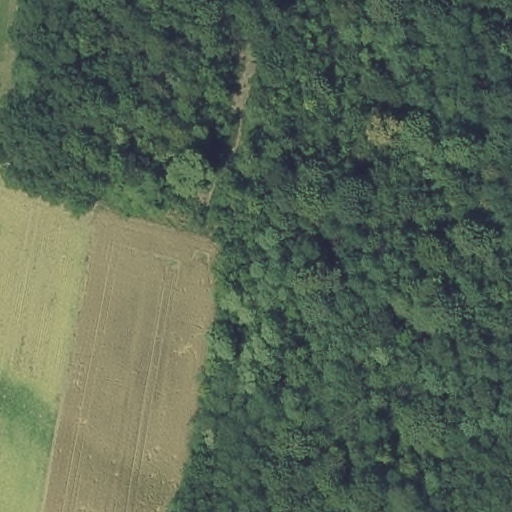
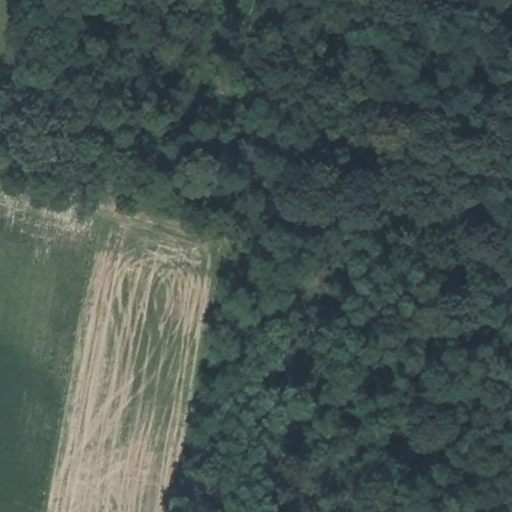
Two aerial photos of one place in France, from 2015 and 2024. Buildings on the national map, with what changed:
[]

